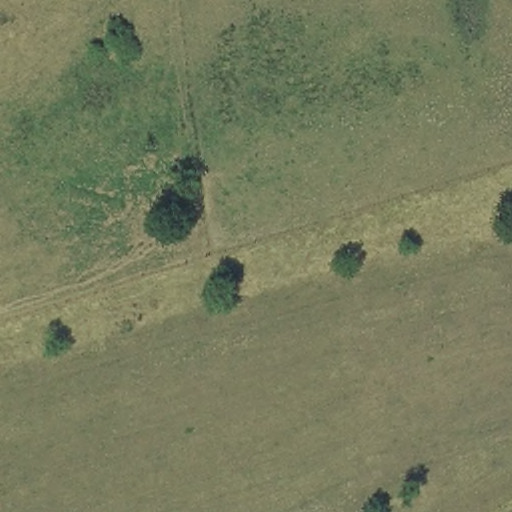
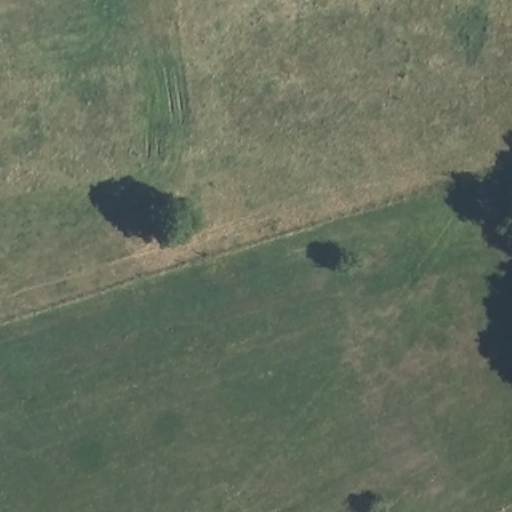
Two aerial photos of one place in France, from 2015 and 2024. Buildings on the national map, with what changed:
[]

